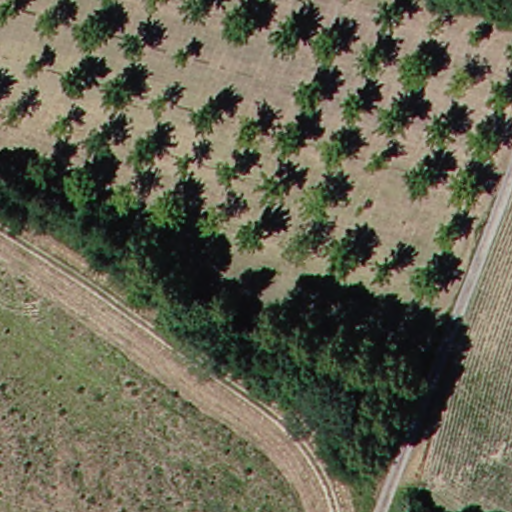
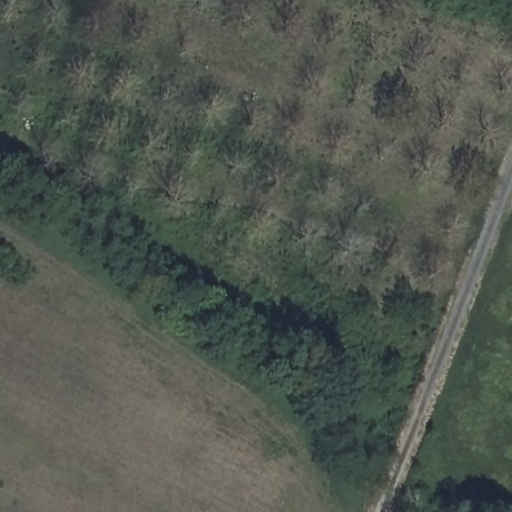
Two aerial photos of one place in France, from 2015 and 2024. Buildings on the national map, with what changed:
[]

